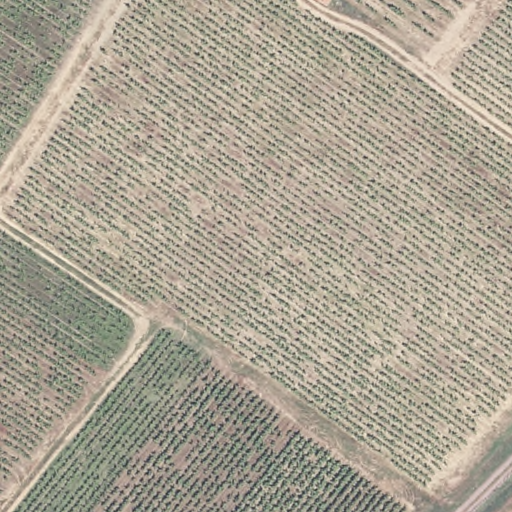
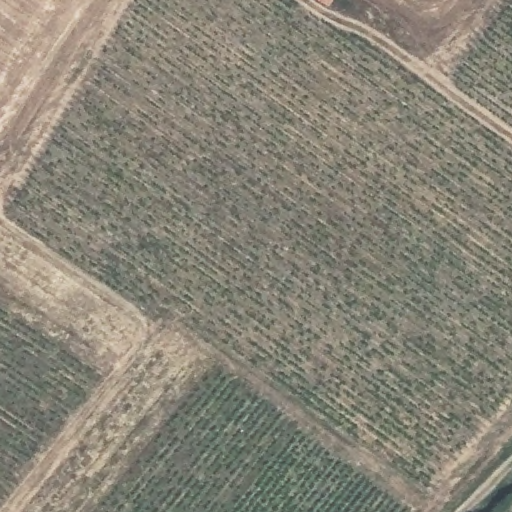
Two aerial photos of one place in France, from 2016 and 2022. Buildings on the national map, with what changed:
unchanged [(324,22),(317,33),(305,25),(312,14),(324,22)]

